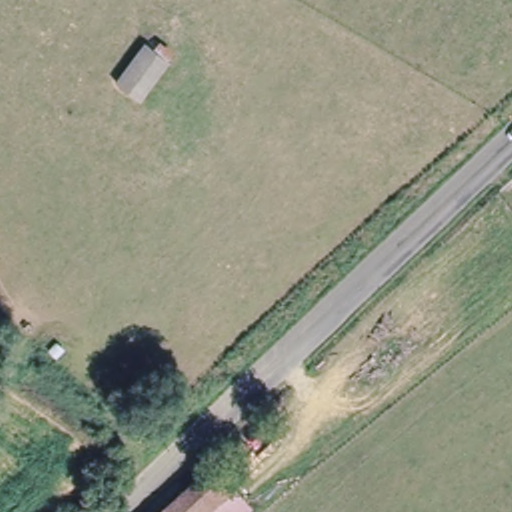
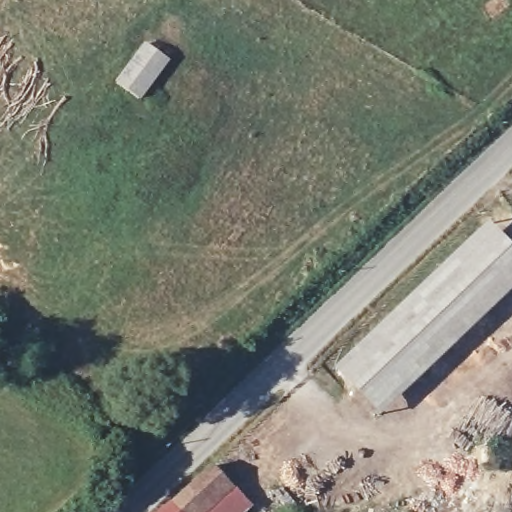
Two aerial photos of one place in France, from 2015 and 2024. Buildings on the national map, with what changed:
unchanged [(152,43),(172,56),(166,64),(169,66),(140,106),(114,86),(143,48),(145,49),(152,43)]
new [(512,291),(380,419),(331,370),(488,222),(512,246),(512,291)]
unchanged [(249,512),(163,512),(166,509),(211,469),(249,512)]

